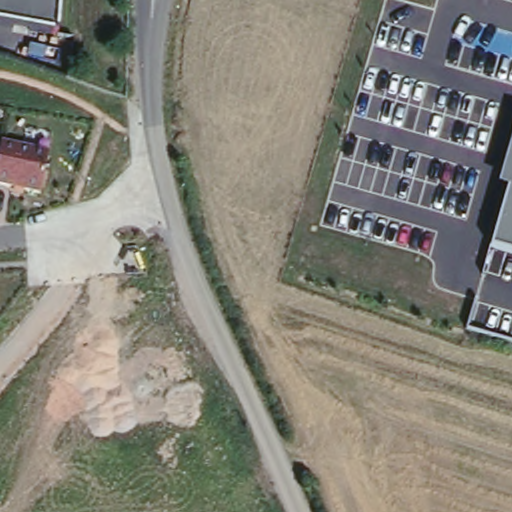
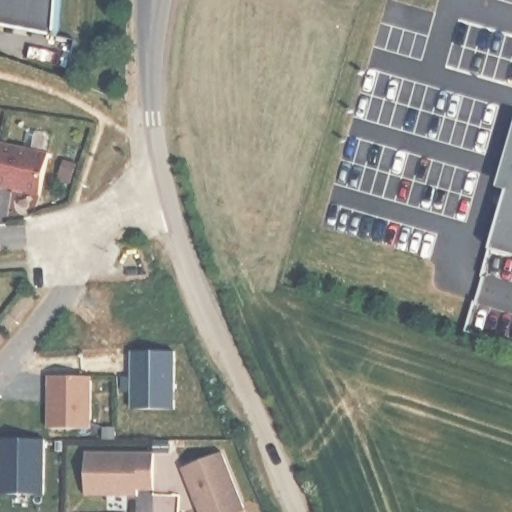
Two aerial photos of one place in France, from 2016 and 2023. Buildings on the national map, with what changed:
unchanged [(0,26),(0,0),(56,0),(53,34),(0,26)]
unchanged [(508,187),(498,184),(512,136),(512,250),(491,244),(508,187)]
unchanged [(0,182),(0,147),(2,140),(50,151),(40,194),(0,182)]
new [(175,343),(174,398),(134,398),(134,344),(175,343)]
new [(92,375),(92,428),(49,427),(49,374),(92,375)]
new [(40,430),(40,485),(0,484),(0,466),(0,431),(40,430)]
new [(184,460),(224,444),(247,504),(226,512),(204,512),(184,460)]
new [(87,451),(155,451),(155,488),(139,488),(139,494),(87,494),(87,451)]

